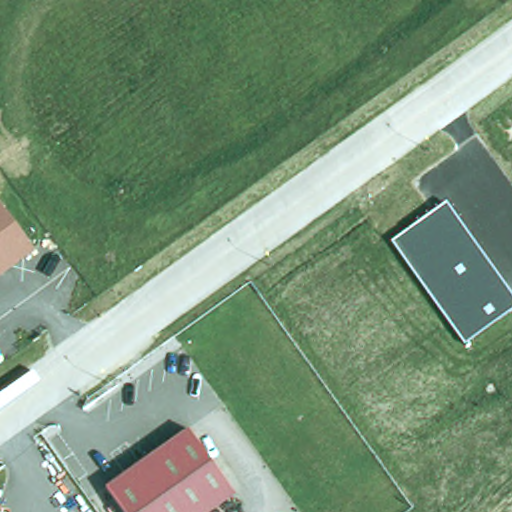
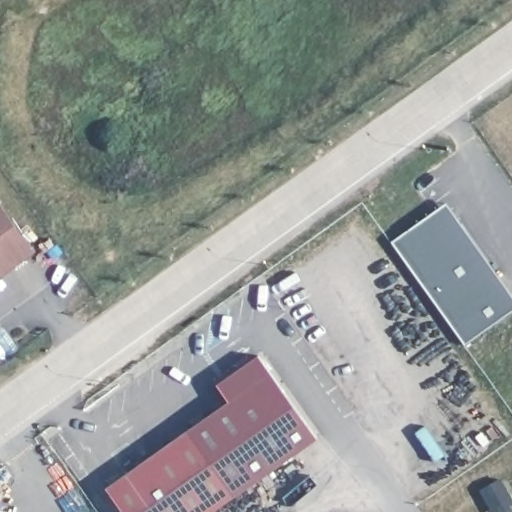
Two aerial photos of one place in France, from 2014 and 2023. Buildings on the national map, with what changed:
unchanged [(463,344),(389,243),(445,204),(512,297),(512,309),(463,344)]
unchanged [(35,252),(0,278),(0,207),(35,252)]
new [(187,433),(230,403),(217,384),(259,355),(319,439),(235,499),(187,433)]
unchanged [(235,499),(214,512),(123,512),(106,489),(187,433),(235,499)]

